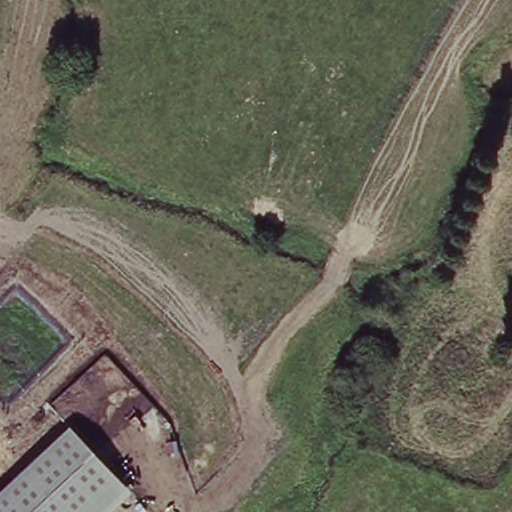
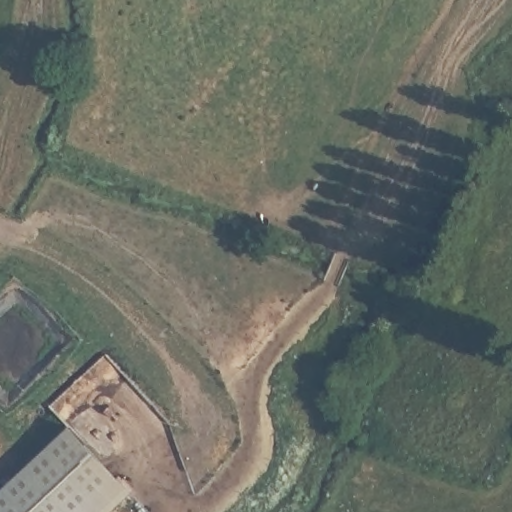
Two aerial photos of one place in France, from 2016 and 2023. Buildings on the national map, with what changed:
unchanged [(106,512),(0,512),(0,494),(72,425),(131,490),(106,512)]

